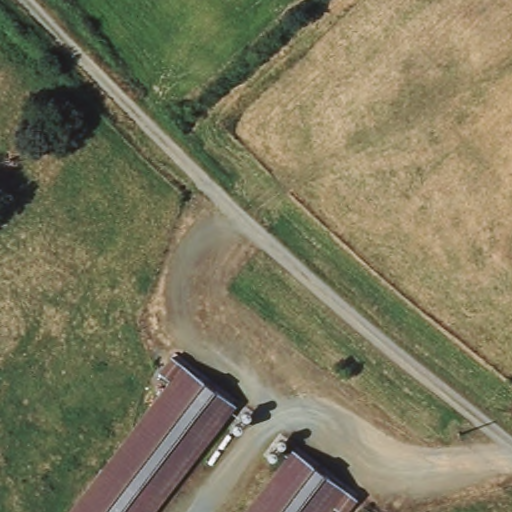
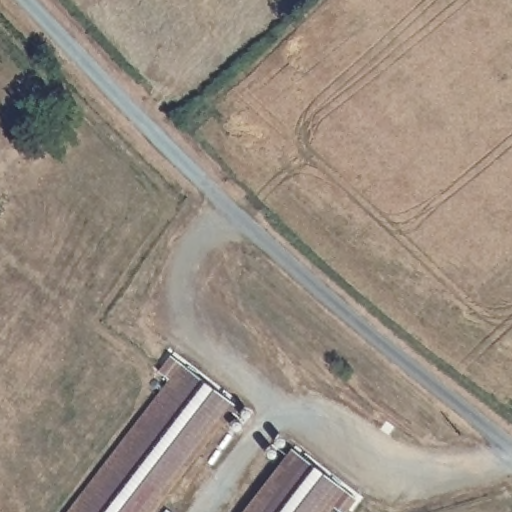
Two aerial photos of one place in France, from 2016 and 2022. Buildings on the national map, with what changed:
unchanged [(241,434),(231,423),(158,512),(66,512),(169,379),(160,370),(169,355),(257,414),(241,434)]
unchanged [(351,512),(340,512),(336,508),(333,512),(239,512),(277,462),(266,455),(282,434),(358,499),(351,512)]

